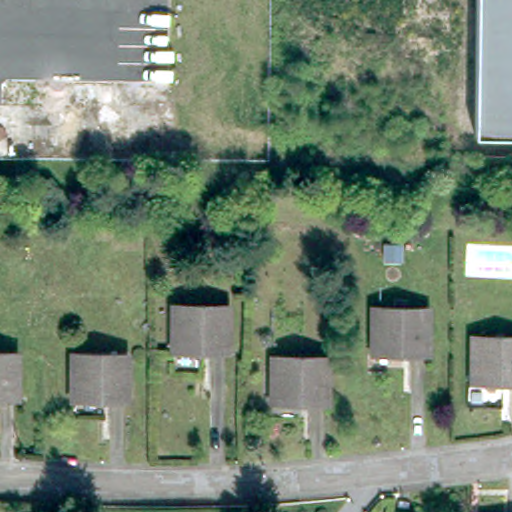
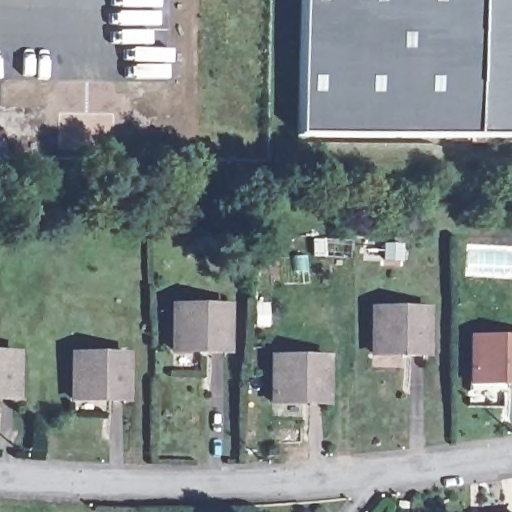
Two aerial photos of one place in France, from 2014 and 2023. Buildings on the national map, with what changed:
new [(478,0),(477,135),(300,131),(302,0),(478,0)]
unchanged [(512,0),(512,136),(477,135),(478,0),(512,0)]
unchanged [(223,308),(223,352),(168,351),(170,307),(223,308)]
unchanged [(423,310),(422,353),(368,354),(370,309),(423,310)]
unchanged [(512,338),(512,382),(473,382),(475,338),(512,338)]
unchanged [(11,399),(0,398),(0,355),(12,355),(11,399)]
unchanged [(123,356),(122,401),(68,400),(68,356),(123,356)]
unchanged [(323,359),(322,403),(269,403),(270,358),(323,359)]

